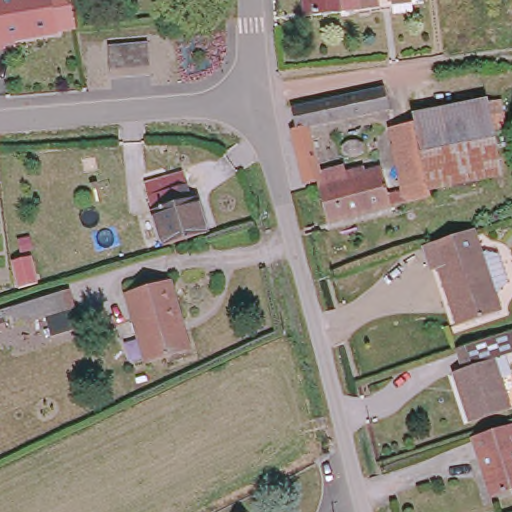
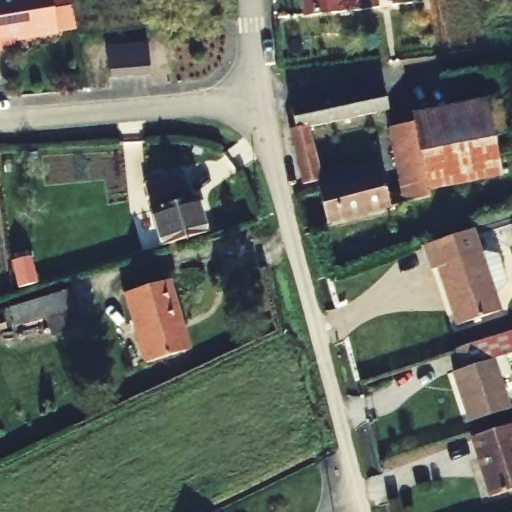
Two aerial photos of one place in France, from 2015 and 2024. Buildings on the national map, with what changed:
unchanged [(315,6),(314,0),(383,0),(384,9),(307,18),(306,7),(315,6)]
unchanged [(416,0),(416,5),(417,9),(397,10),(397,8),(396,0),(416,0)]
unchanged [(103,76),(101,45),(140,42),(143,73),(103,76)]
unchanged [(386,84),(391,107),(313,124),(324,178),(306,183),(291,127),(298,125),(295,105),(386,84)]
unchanged [(487,100),(502,173),(429,188),(415,120),(414,114),(487,100)]
unchanged [(429,188),(430,195),(328,221),(320,185),(385,169),(391,193),(405,190),(392,125),(415,120),(429,188)]
unchanged [(165,252),(151,201),(185,189),(190,205),(203,202),(212,239),(165,252)]
unchanged [(435,248),(476,234),(481,250),(476,251),(490,294),(495,292),(502,314),(457,328),(441,274),(434,274),(426,251),(435,248)]
unchanged [(38,282),(18,287),(12,258),(32,255),(38,282)]
unchanged [(182,333),(177,334),(183,361),(144,371),(123,292),(170,280),(182,333)]
unchanged [(65,288),(70,308),(12,325),(7,306),(24,301),(65,288)]
unchanged [(512,337),(512,357),(488,365),(503,415),(466,427),(451,376),(460,373),(455,355),(512,337)]
unchanged [(512,431),(512,498),(497,502),(480,441),(512,431)]

